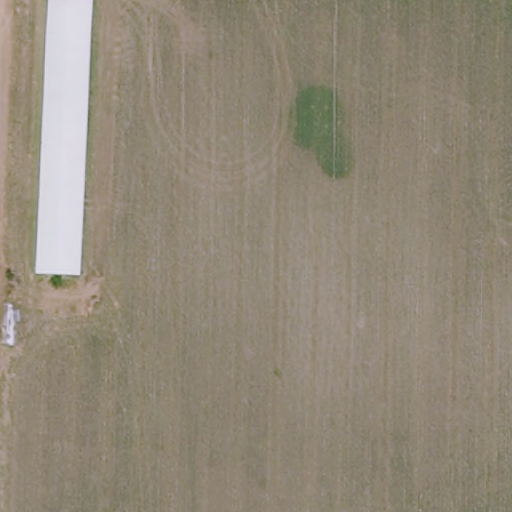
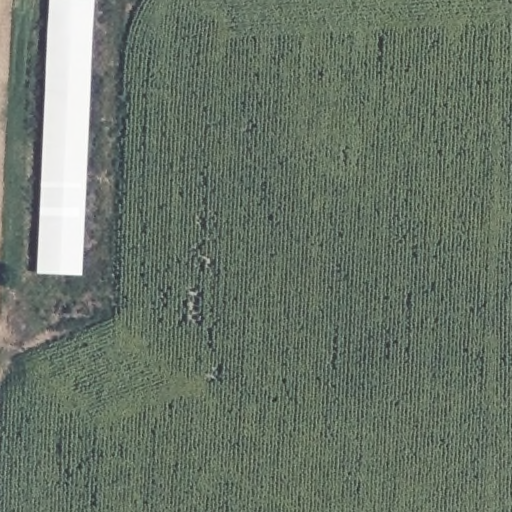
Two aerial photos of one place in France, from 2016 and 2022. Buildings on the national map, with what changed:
unchanged [(35,272),(51,0),(98,0),(88,276),(35,272)]

